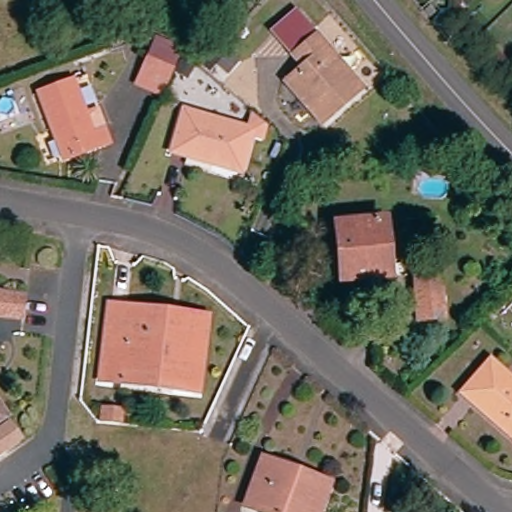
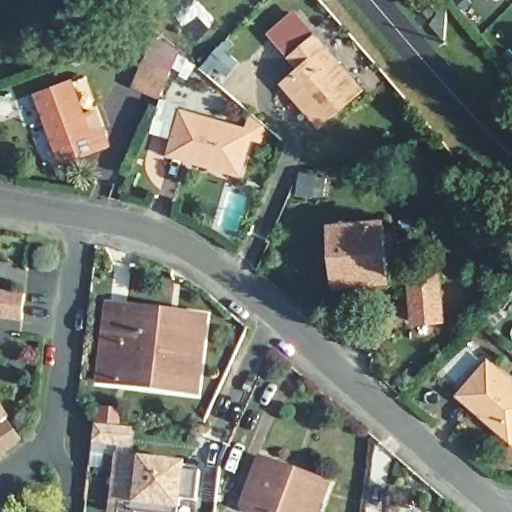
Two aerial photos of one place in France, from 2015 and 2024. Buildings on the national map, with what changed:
unchanged [(362,99),(322,134),(287,93),(304,79),(294,66),(317,47),(362,99)]
unchanged [(168,87),(142,77),(152,50),(180,60),(168,87)]
unchanged [(37,98),(72,85),(90,137),(102,133),(107,147),(61,165),(37,98)]
unchanged [(172,159),(185,116),(247,135),(252,117),(266,129),(262,143),(252,140),(242,179),(172,159)]
unchanged [(386,226),(391,283),(342,288),(337,230),(386,226)]
unchanged [(440,273),(444,318),(419,321),(415,275),(440,273)]
new [(25,295),(21,322),(0,320),(0,290),(25,295)]
unchanged [(121,388),(103,386),(112,310),(130,313),(184,320),(207,323),(199,386),(198,397),(121,388)]
unchanged [(512,443),(463,398),(493,366),(512,384),(512,443)]
unchanged [(9,420),(0,426),(0,408),(9,420)]
new [(98,425),(101,408),(123,411),(122,426),(136,428),(133,449),(96,445),(98,425)]
unchanged [(10,425),(21,440),(0,455),(0,431),(10,425)]
new [(117,453),(189,462),(189,472),(201,472),(199,501),(185,500),(185,510),(177,510),(178,512),(110,512),(117,453)]
unchanged [(247,508),(265,460),(283,467),(282,471),(328,489),(320,512),(257,512),(247,508)]

